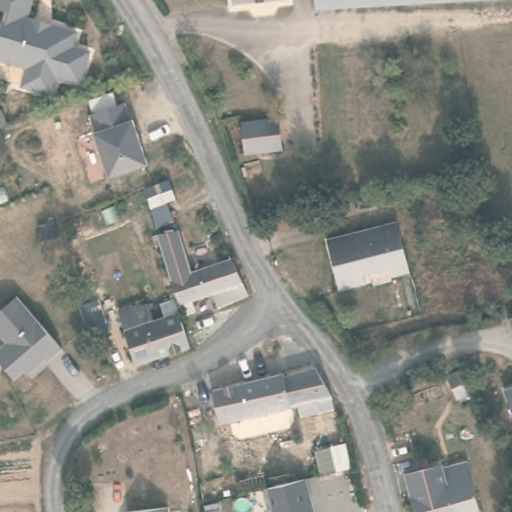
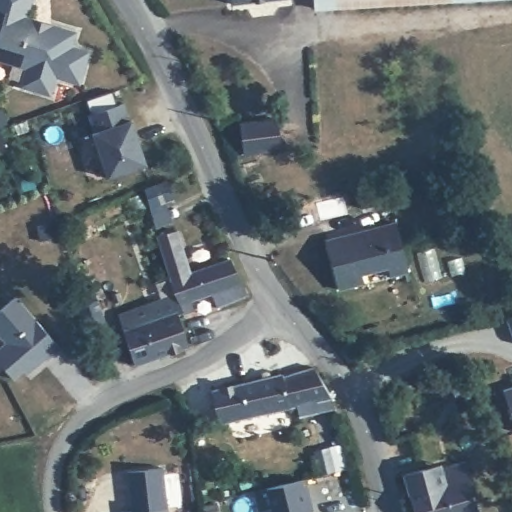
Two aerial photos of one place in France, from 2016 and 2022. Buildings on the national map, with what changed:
unchanged [(32,21),(35,27),(44,29),(50,27),(75,34),(71,49),(88,54),(78,85),(54,77),(49,96),(21,87),(26,69),(0,61),(0,30),(6,12),(0,11),(0,0),(32,0),(26,19),(32,21)]
unchanged [(234,0),(266,0),(235,4),(234,0)]
unchanged [(317,0),(452,0),(317,7),(317,0)]
unchanged [(137,136),(148,164),(109,178),(96,147),(92,134),(94,134),(88,116),(122,103),(129,120),(131,120),(137,136)]
unchanged [(284,150),(246,153),(243,123),(279,119),(284,150)]
unchanged [(391,202),(364,207),(362,194),(388,189),(391,202)]
unchanged [(398,220),(411,271),(392,276),(390,267),(361,275),(363,283),(339,290),(327,237),(398,220)]
unchanged [(154,239),(174,234),(188,273),(227,263),(245,299),(215,312),(209,298),(188,303),(193,316),(182,319),(160,256),(154,239)]
unchanged [(14,379),(0,363),(0,347),(6,342),(0,336),(0,309),(15,297),(61,347),(47,360),(45,357),(33,368),(26,374),(24,371),(14,379)]
unchanged [(143,309),(150,326),(175,317),(176,321),(178,327),(195,322),(202,347),(186,352),(131,369),(116,320),(143,309)]
unchanged [(508,322),(512,321),(512,335),(508,322)]
unchanged [(274,376),(284,373),(285,377),(317,367),(334,398),(320,401),(321,412),(302,417),(299,405),(280,410),(264,413),(222,422),(215,389),(274,376)]
unchanged [(503,389),(512,386),(512,415),(503,389)]
unchanged [(480,512),(416,512),(413,500),(429,496),(425,481),(443,476),(443,472),(467,466),(480,512)]
new [(125,472),(161,467),(166,508),(135,512),(132,512),(128,512),(125,472)]
unchanged [(307,480),(315,510),(312,511),(312,512),(270,512),(273,512),(268,488),(307,480)]
unchanged [(170,512),(133,512),(170,507),(170,512)]

